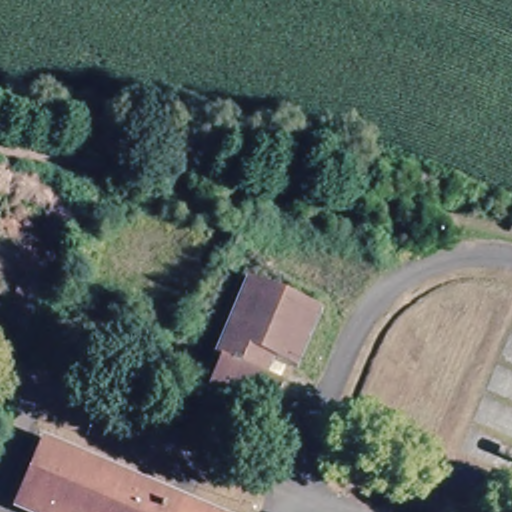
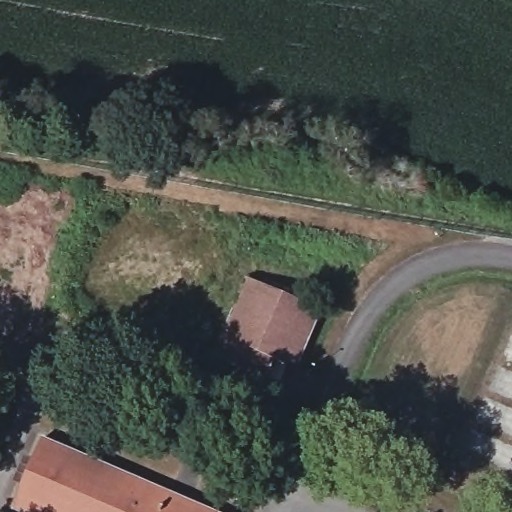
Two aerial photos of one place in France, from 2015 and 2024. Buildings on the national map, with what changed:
unchanged [(297,368),(277,357),(268,378),(283,383),(265,425),(200,399),(220,333),(246,271),(323,308),(297,368)]
unchanged [(16,512),(8,508),(41,432),(227,512),(16,512)]

